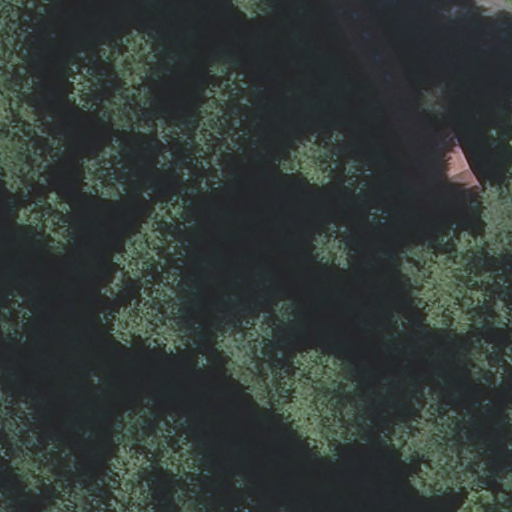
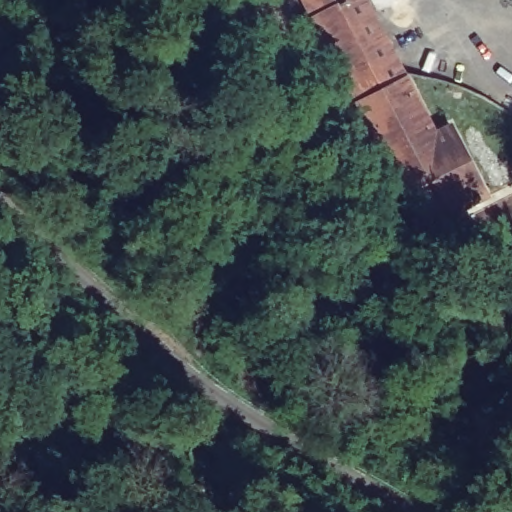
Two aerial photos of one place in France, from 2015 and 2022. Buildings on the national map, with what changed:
unchanged [(355,0),(357,6),(312,26),(301,0),(355,0)]
unchanged [(312,26),(357,6),(368,1),(405,84),(349,109),(312,26)]
unchanged [(415,80),(467,201),(402,230),(349,109),(405,84),(415,80)]

